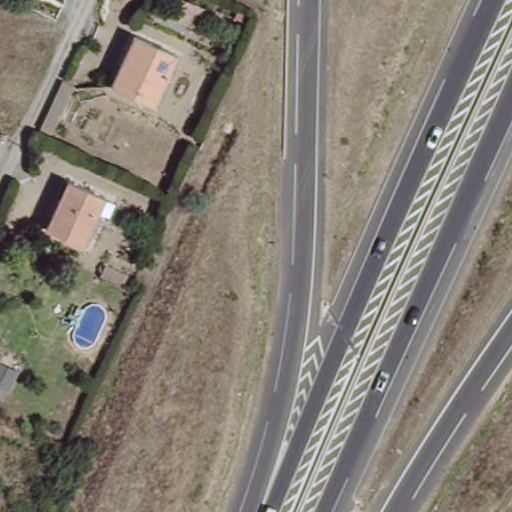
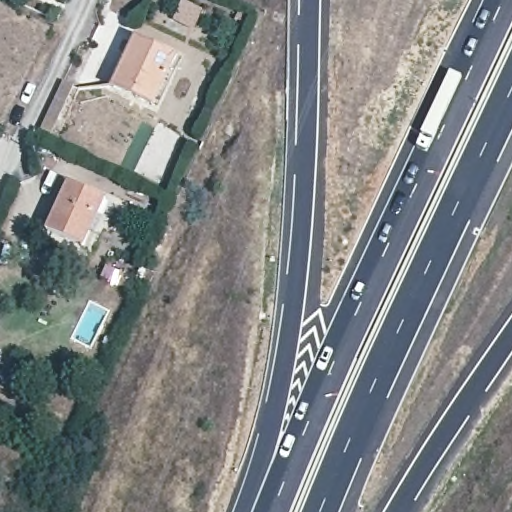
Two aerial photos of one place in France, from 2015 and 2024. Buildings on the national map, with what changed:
unchanged [(45,7),(28,0),(49,0),(45,7)]
unchanged [(107,84),(129,33),(169,52),(145,102),(107,84)]
unchanged [(70,81),(89,90),(65,138),(47,130),(70,81)]
unchanged [(47,229),(70,178),(104,196),(79,246),(47,229)]
unchanged [(112,279),(90,268),(95,258),(117,269),(129,275),(125,285),(112,279)]

